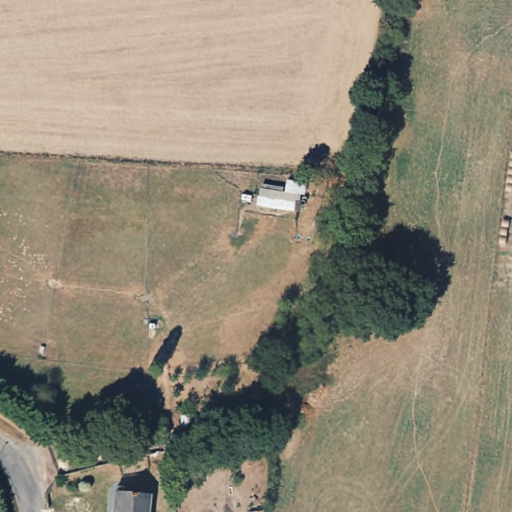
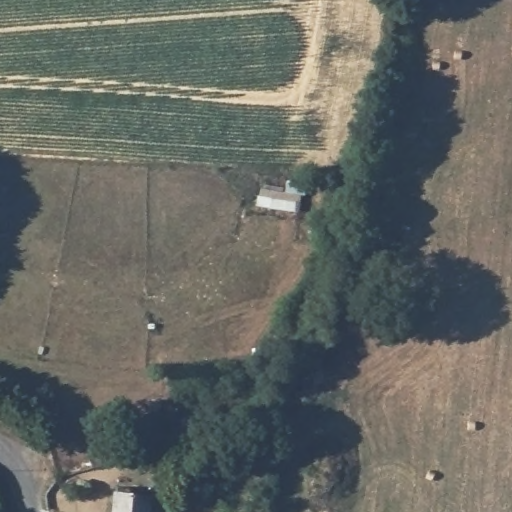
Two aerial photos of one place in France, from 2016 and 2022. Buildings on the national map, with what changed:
unchanged [(144,512),(109,512),(114,487),(147,494),(144,512)]

